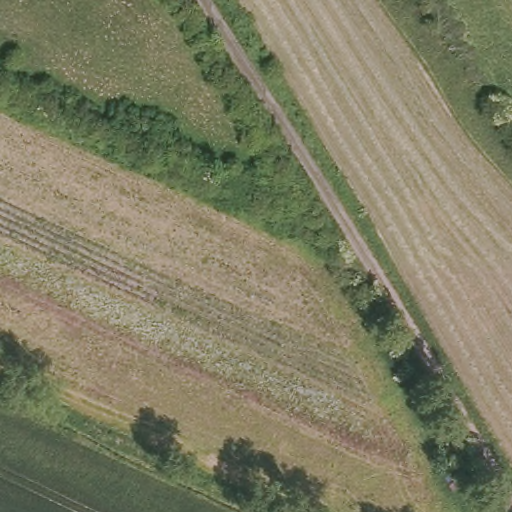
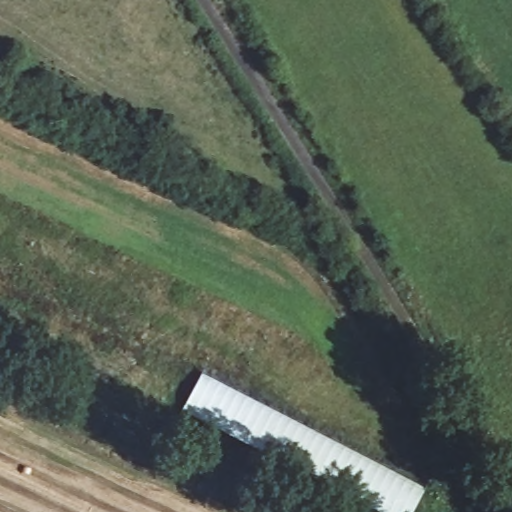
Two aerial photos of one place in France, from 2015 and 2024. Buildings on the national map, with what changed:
new [(369,512),(180,415),(200,377),(425,492),(415,512),(369,512)]

